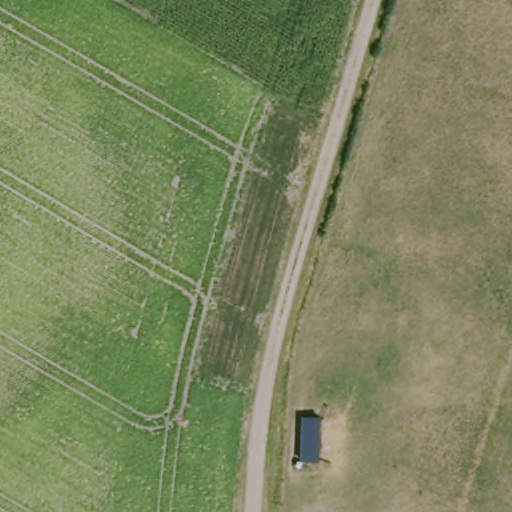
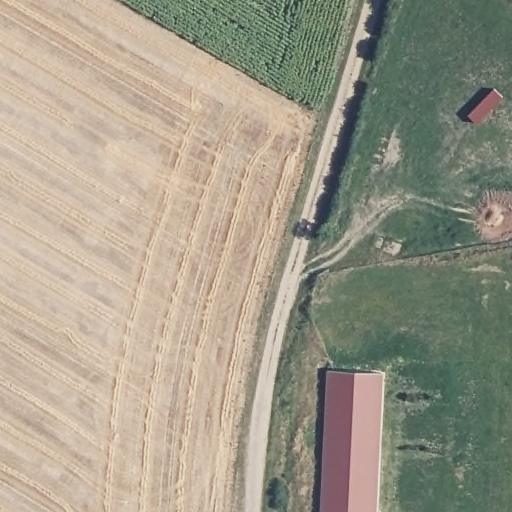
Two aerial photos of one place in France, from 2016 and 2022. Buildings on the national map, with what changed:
new [(329,371),(384,373),(377,512),(323,512),(329,371)]

